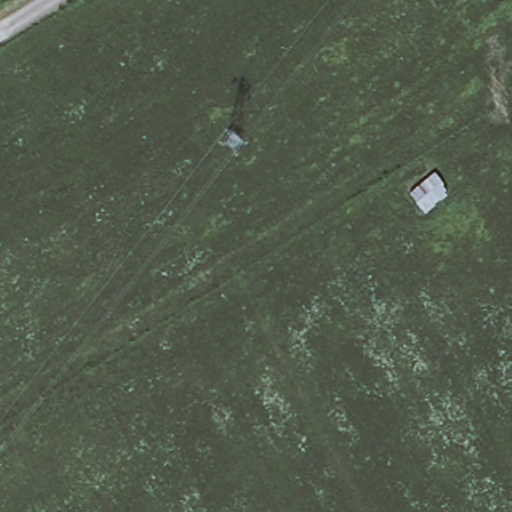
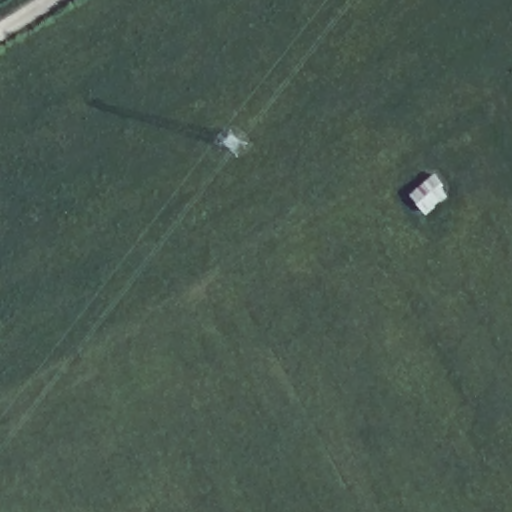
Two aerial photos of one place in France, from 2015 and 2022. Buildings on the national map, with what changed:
unchanged [(435,170),(450,192),(425,213),(407,190),(435,170)]

